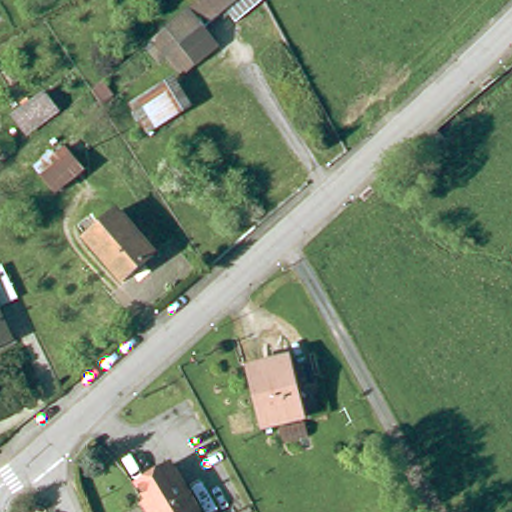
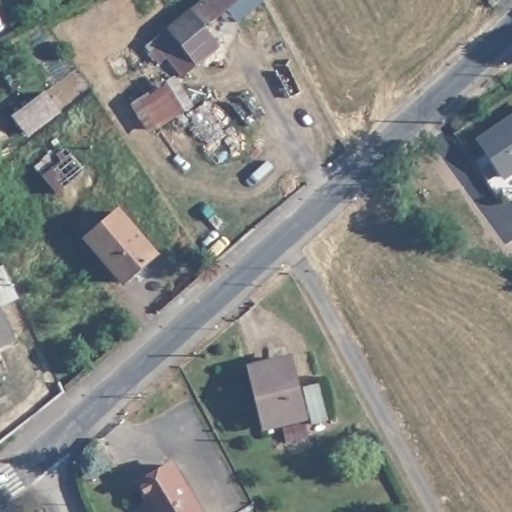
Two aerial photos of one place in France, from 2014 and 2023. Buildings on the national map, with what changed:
unchanged [(208,0),(259,0),(240,15),(227,11),(211,25),(225,43),(188,73),(159,39),(208,0)]
unchanged [(56,114),(25,138),(13,123),(45,99),(56,114)]
unchanged [(182,122),(158,134),(145,109),(170,99),(182,122)]
new [(475,139),(512,114),(512,176),(504,181),(475,139)]
unchanged [(80,178),(53,199),(41,183),(68,163),(80,178)]
unchanged [(155,253),(122,279),(89,239),(120,213),(155,253)]
unchanged [(18,304),(0,313),(0,270),(2,269),(18,304)]
unchanged [(8,349),(0,353),(0,331),(8,349)]
unchanged [(267,433),(253,374),(292,363),(308,423),(267,433)]
unchanged [(147,495),(137,481),(170,462),(201,512),(149,512),(141,499),(147,495)]

